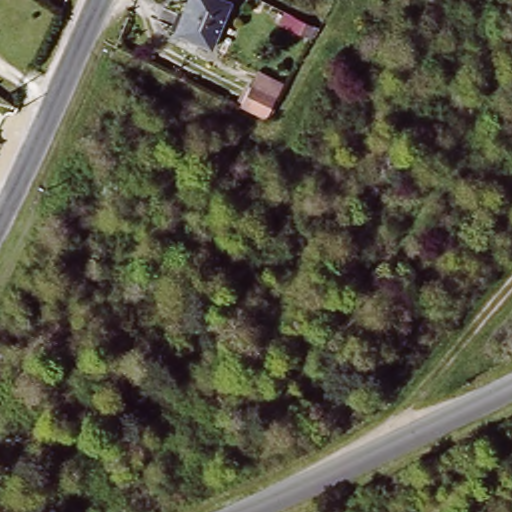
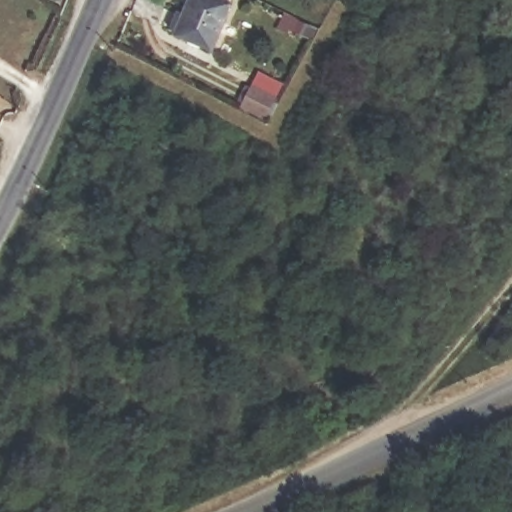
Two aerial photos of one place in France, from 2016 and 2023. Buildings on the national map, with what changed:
unchanged [(207,51),(173,34),(190,0),(217,0),(230,7),(207,51)]
unchanged [(250,79),(276,93),(266,112),(240,99),(250,79)]

